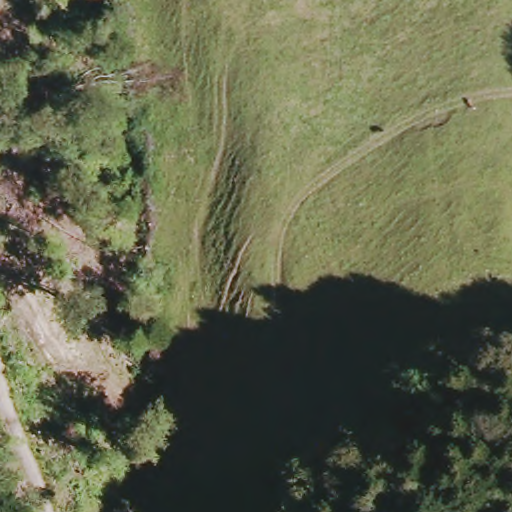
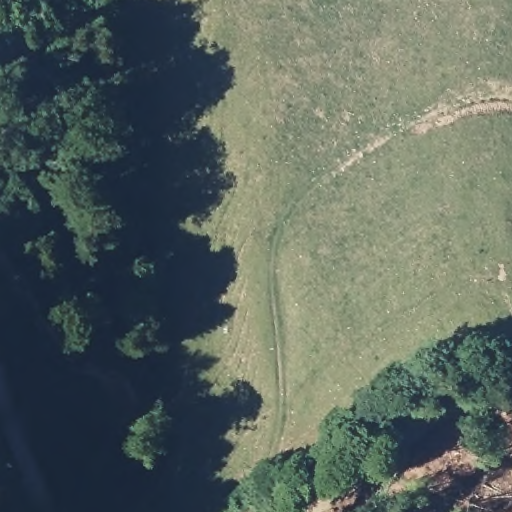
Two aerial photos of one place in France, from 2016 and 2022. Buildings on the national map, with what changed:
[]

